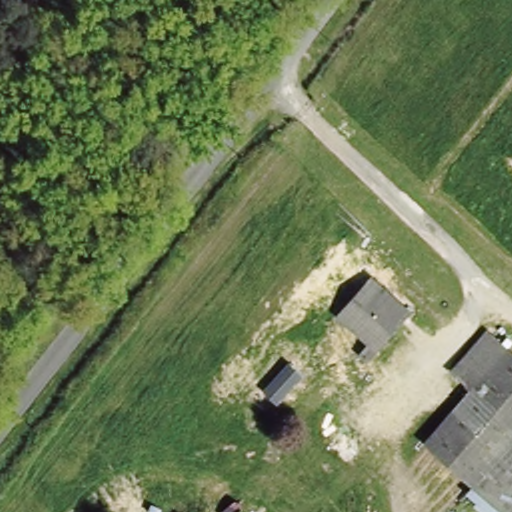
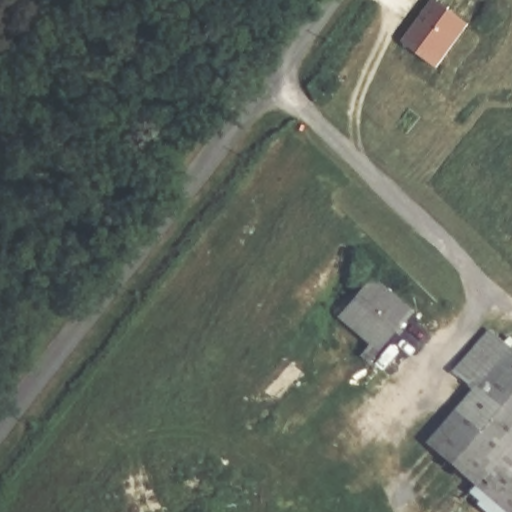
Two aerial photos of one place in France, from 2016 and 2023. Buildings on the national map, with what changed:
new [(402,44),(433,0),(437,0),(471,24),(438,69),(402,44)]
unchanged [(361,351),(370,339),(339,315),(340,314),(367,277),(409,310),(370,359),(361,351)]
unchanged [(479,486),(429,448),(476,388),(455,372),(484,334),(512,356),(512,444),(479,486)]
unchanged [(479,486),(512,444),(512,512),(479,486)]
unchanged [(512,512),(484,512),(468,499),(479,486),(512,512)]

